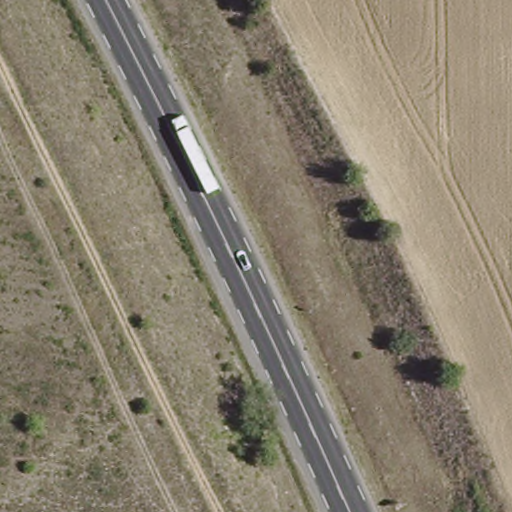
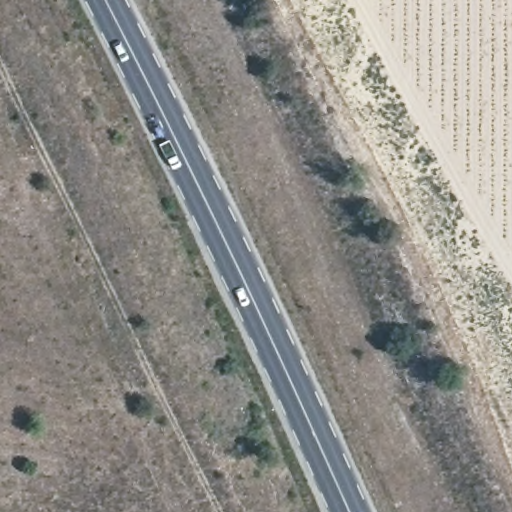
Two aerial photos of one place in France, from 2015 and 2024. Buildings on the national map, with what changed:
[]

